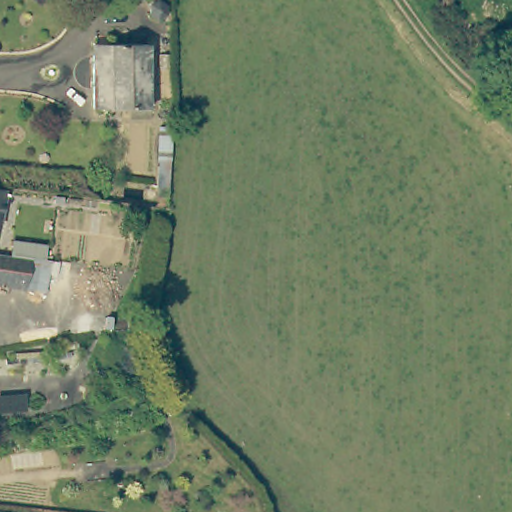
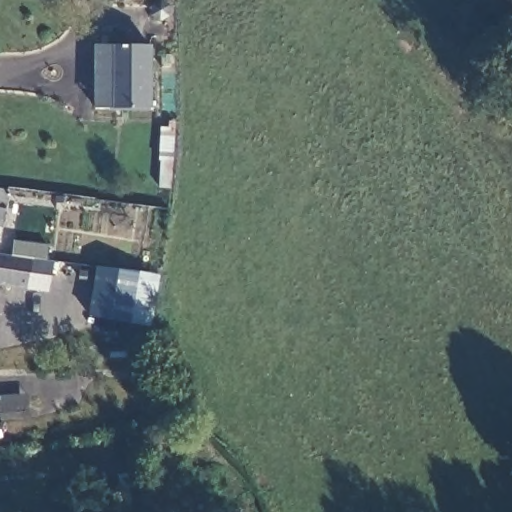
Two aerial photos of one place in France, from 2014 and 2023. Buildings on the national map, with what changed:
unchanged [(148,108),(95,108),(94,44),(108,44),(149,44),(148,108)]
unchanged [(157,186),(161,126),(174,127),(170,187),(157,186)]
unchanged [(7,195),(0,227),(0,194),(7,195)]
unchanged [(10,259),(11,246),(46,250),(45,264),(53,265),(49,294),(0,289),(0,258),(10,259)]
new [(151,326),(88,317),(96,264),(160,273),(151,326)]

